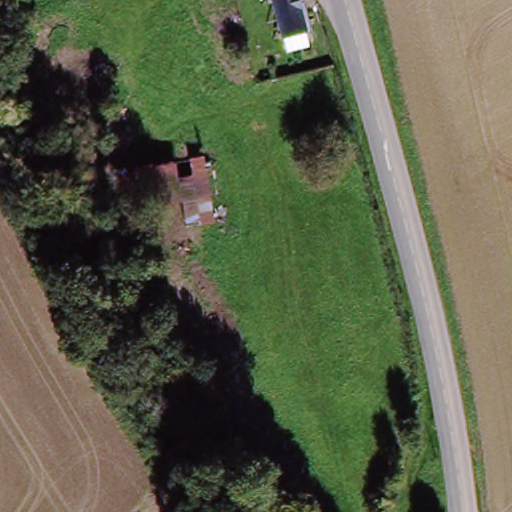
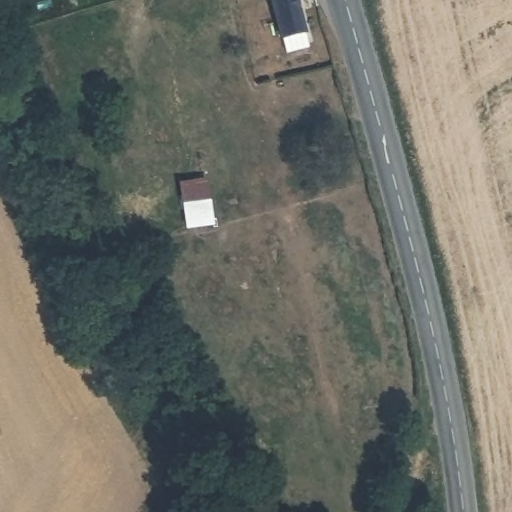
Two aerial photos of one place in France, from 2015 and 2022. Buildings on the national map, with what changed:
unchanged [(280,43),(271,0),(298,0),(307,37),(280,43)]
unchanged [(107,145),(109,174),(87,175),(90,144),(107,145)]
unchanged [(214,224),(189,230),(185,207),(117,216),(111,175),(204,162),(214,224)]

